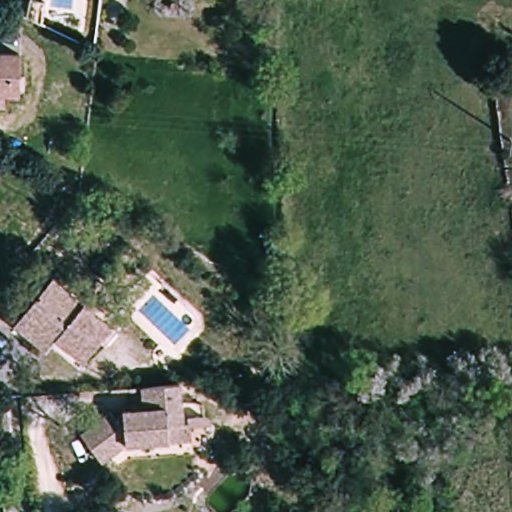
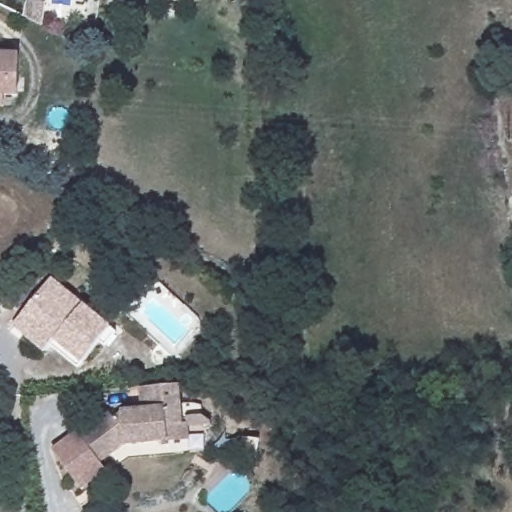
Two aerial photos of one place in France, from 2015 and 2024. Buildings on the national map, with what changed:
unchanged [(211,1),(212,0),(239,0),(238,1),(211,1)]
unchanged [(17,54),(12,95),(0,94),(0,53),(17,54)]
unchanged [(50,340),(45,346),(12,318),(22,307),(52,272),(117,328),(105,343),(99,338),(82,358),(77,364),(50,340)]
unchanged [(186,436),(167,438),(122,441),(95,457),(78,427),(107,408),(112,414),(119,408),(119,407),(128,407),(128,400),(141,399),(139,383),(175,380),(176,380),(179,420),(185,419),(186,436)]
new [(83,490),(52,448),(78,427),(95,457),(122,441),(126,447),(102,464),(108,471),(83,490)]

